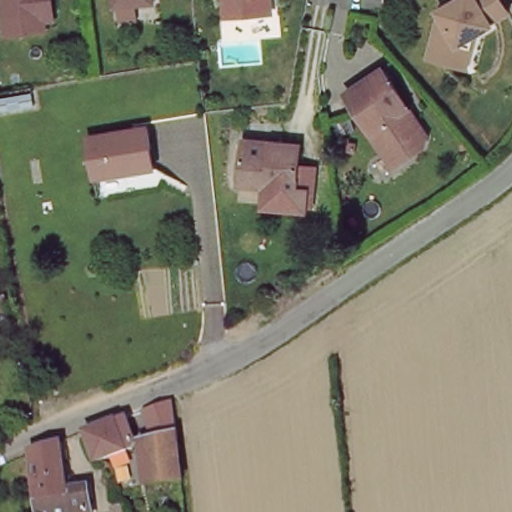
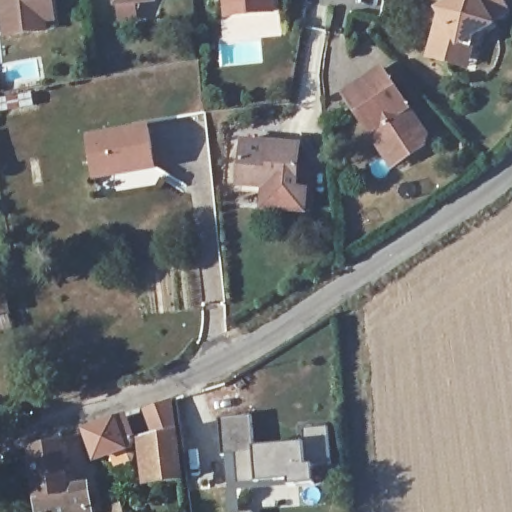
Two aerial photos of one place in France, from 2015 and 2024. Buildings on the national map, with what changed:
unchanged [(51,21),(41,22),(42,32),(2,35),(0,17),(0,0),(48,0),(51,21)]
unchanged [(154,2),(116,5),(116,0),(154,0),(154,2)]
unchanged [(237,0),(282,0),(283,9),(275,10),(248,12),(238,12),(237,0)]
unchanged [(451,62),(427,56),(437,12),(435,9),(448,0),(498,0),(503,9),(486,19),(488,22),(471,32),(464,65),(451,62)]
unchanged [(393,147),(357,90),(393,65),(418,104),(415,107),(422,119),(426,116),(437,133),(437,142),(410,161),(404,165),(393,147)]
unchanged [(93,135),(150,127),(155,166),(97,175),(93,135)]
unchanged [(266,182),(241,179),(245,134),(302,140),(300,161),(316,162),(314,186),(312,202),(307,202),(306,207),(280,204),(264,202),(266,182)]
unchanged [(176,398),(186,481),(160,485),(152,442),(139,415),(176,398)]
new [(256,448),(305,443),(305,431),(329,428),(332,464),(313,467),(313,485),(290,486),(239,492),(239,512),(231,512),(227,456),(222,456),(221,421),(252,417),(256,448)]
unchanged [(102,459),(92,431),(121,422),(130,448),(112,455),(102,459)]
unchanged [(69,479),(90,477),(95,512),(42,512),(32,439),(60,430),(69,479)]

